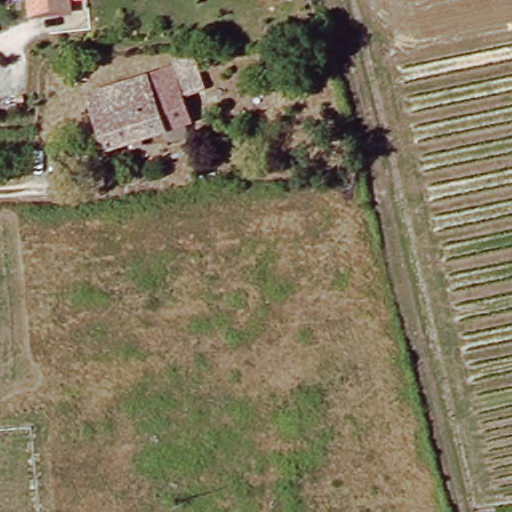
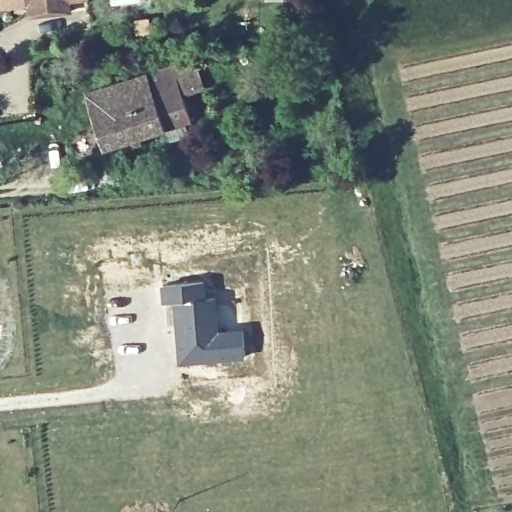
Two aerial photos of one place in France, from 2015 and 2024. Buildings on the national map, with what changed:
unchanged [(31,15),(29,0),(69,0),(71,10),(31,15)]
unchanged [(105,150),(86,94),(174,66),(192,121),(105,150)]
new [(220,330),(242,328),(245,359),(178,365),(171,303),(162,305),(160,285),(205,281),(207,297),(216,296),(220,330)]

